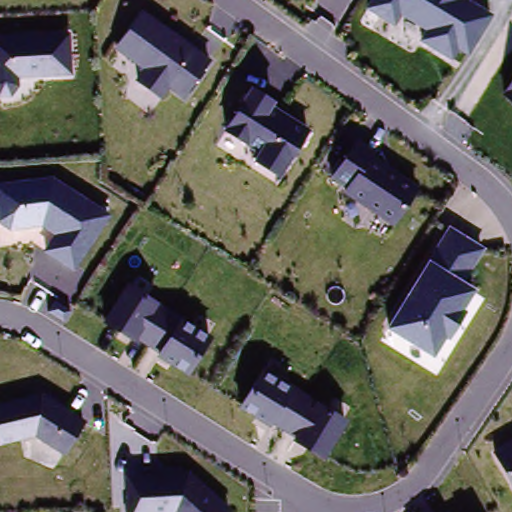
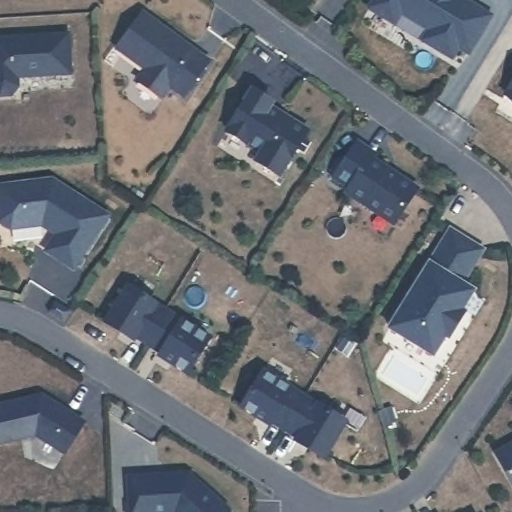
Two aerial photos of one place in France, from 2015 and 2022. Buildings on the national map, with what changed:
unchanged [(492,17),(469,60),(458,53),(452,62),(420,42),(425,34),(401,18),(395,27),(365,9),(369,0),(467,0),(466,2),(492,17)]
unchanged [(208,59),(182,100),(165,90),(160,99),(139,82),(148,72),(115,46),(142,7),(208,59)]
unchanged [(69,30),(72,76),(19,80),(20,88),(10,96),(0,98),(0,33),(69,30)]
unchanged [(512,73),(512,101),(500,94),(512,73)]
unchanged [(252,161),(260,146),(227,128),(254,85),(270,97),(265,107),(303,130),(278,176),(252,161)]
unchanged [(351,184),(334,172),(357,142),(374,152),(369,160),(416,189),(396,224),(345,193),(351,184)]
unchanged [(50,177),(107,217),(74,268),(45,249),(52,235),(41,229),(9,234),(0,226),(0,184),(50,177)]
unchanged [(446,221),(486,245),(463,288),(477,297),(442,357),(385,325),(446,221)]
unchanged [(212,338),(187,377),(102,320),(126,281),(212,338)]
unchanged [(348,422),(324,465),(295,443),(296,441),(268,424),(266,428),(235,408),(260,362),(348,422)]
unchanged [(42,393),(85,425),(62,460),(32,439),(0,446),(0,402),(42,393)]
unchanged [(512,476),(498,451),(512,444),(512,476)]
unchanged [(185,470),(230,511),(230,512),(128,512),(124,471),(185,470)]

